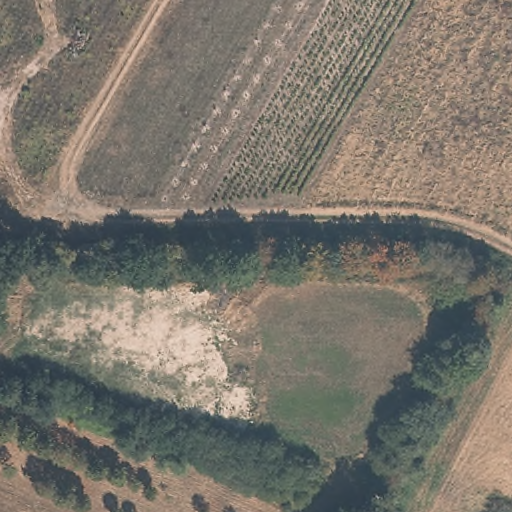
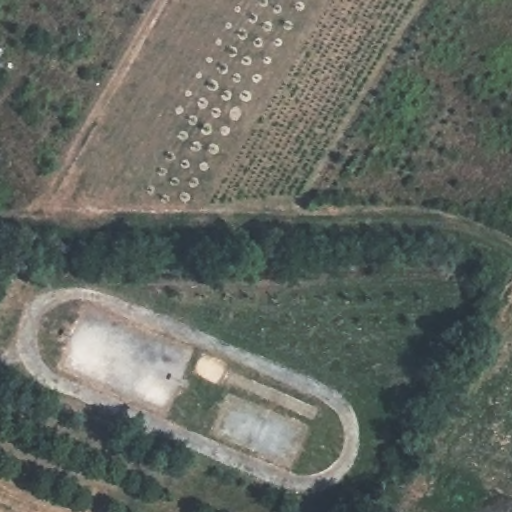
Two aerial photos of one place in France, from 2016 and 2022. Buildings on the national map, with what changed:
[]

